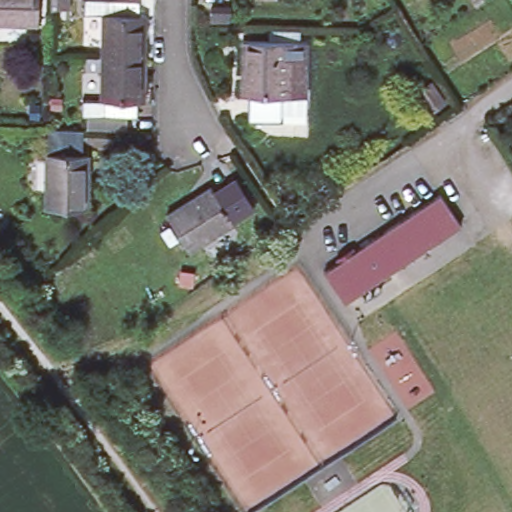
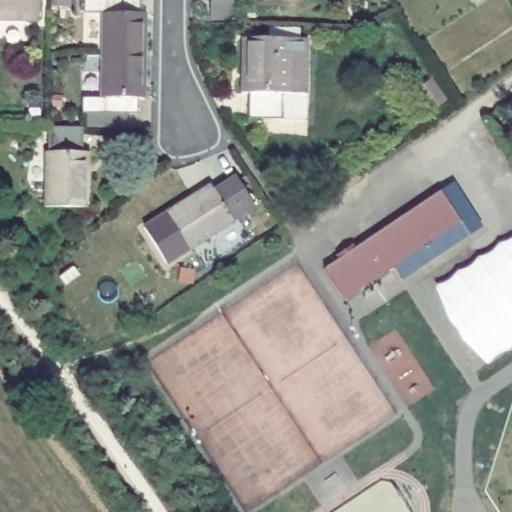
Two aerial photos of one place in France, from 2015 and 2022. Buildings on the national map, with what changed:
unchanged [(33,26),(0,25),(0,0),(34,0),(33,26)]
unchanged [(63,7),(50,6),(51,0),(63,0),(63,7)]
unchanged [(95,23),(80,23),(80,5),(132,6),(132,24),(138,24),(137,64),(95,63),(95,23)]
unchanged [(247,95),(238,95),(240,40),(267,41),(267,32),(298,33),(298,42),(307,42),(304,122),(281,121),(246,120),(247,95)]
unchanged [(137,64),(136,104),(131,104),(130,122),(78,120),(78,103),(93,103),(95,63),(137,64)]
unchanged [(75,135),(75,160),(80,160),(80,215),(38,215),(40,135),(52,135),(75,135)]
unchanged [(250,208),(183,253),(161,220),(207,189),(210,193),(230,179),(250,208)]
unchanged [(322,272),(435,193),(459,225),(340,302),(322,272)]
new [(462,343),(447,322),(437,290),(512,240),(512,347),(486,364),(462,343)]

